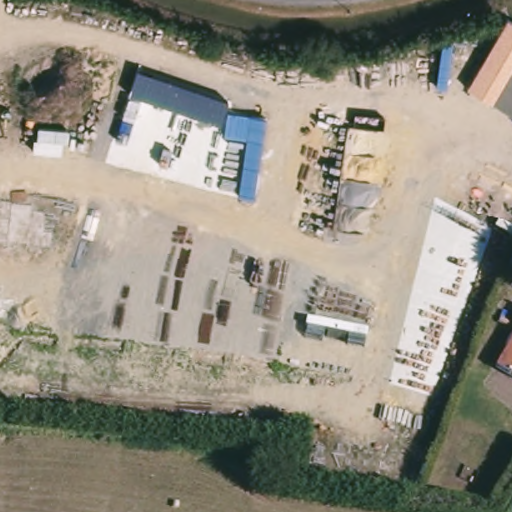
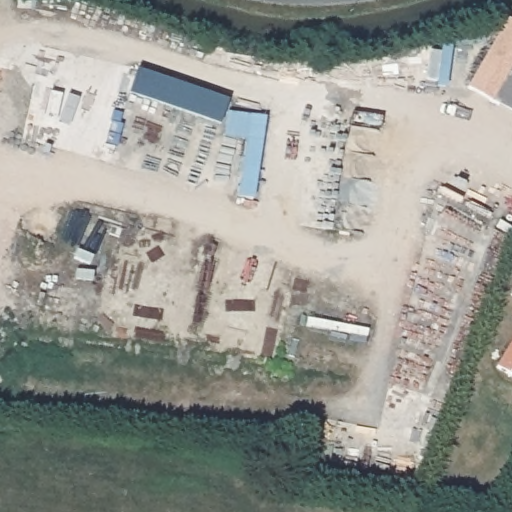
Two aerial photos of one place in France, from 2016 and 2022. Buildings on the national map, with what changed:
unchanged [(506,17),(512,21),(512,80),(496,109),(466,91),(506,17)]
unchanged [(220,124),(141,98),(128,142),(116,139),(136,70),(229,101),(220,124)]
unchanged [(496,109),(512,80),(512,117),(507,115),(496,109)]
unchanged [(254,197),(239,195),(244,141),(225,139),(228,112),(266,117),(254,197)]
unchanged [(505,330),(512,319),(512,383),(491,370),(511,333),(505,330)]

